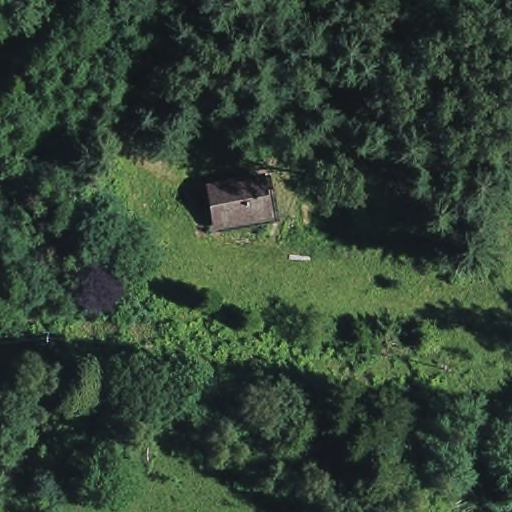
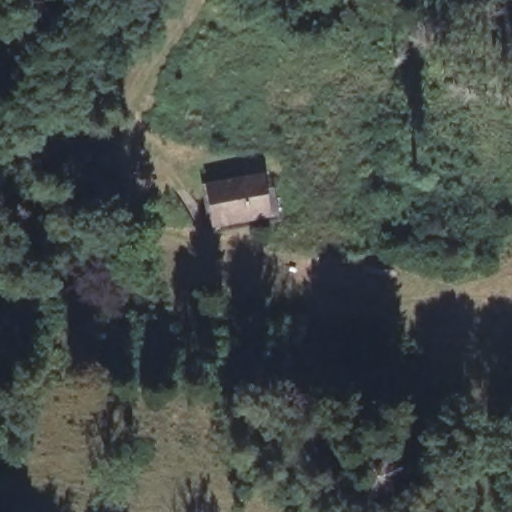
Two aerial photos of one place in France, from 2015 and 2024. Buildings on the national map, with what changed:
unchanged [(205,183),(260,172),(274,216),(211,229),(205,183)]

